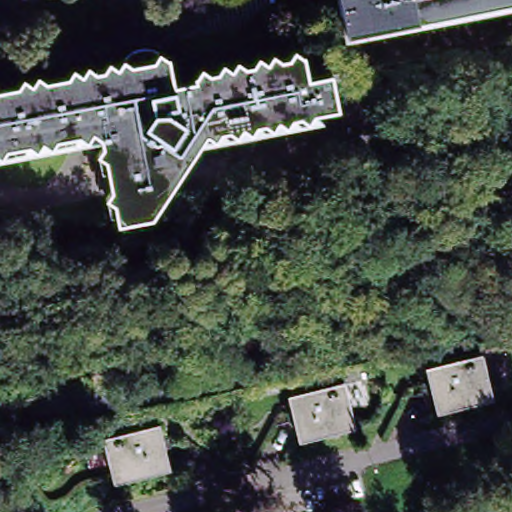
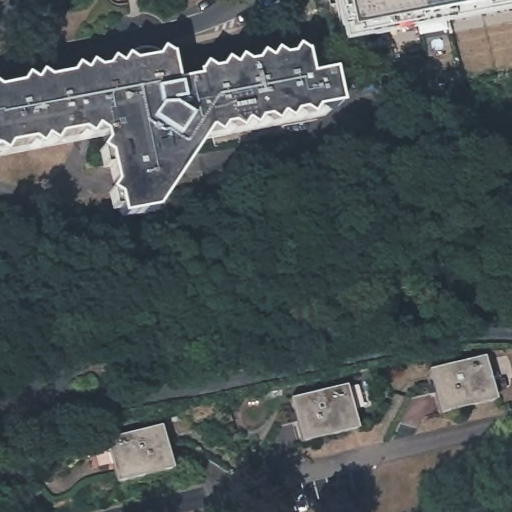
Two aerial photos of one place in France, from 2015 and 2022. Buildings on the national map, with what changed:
unchanged [(346,0),(512,0),(512,5),(353,37),(346,0)]
unchanged [(512,52),(334,87),(332,77),(512,42),(512,52)]
unchanged [(339,112),(207,138),(196,157),(191,157),(130,170),(112,173),(105,142),(97,136),(0,155),(0,95),(20,91),(25,84),(33,89),(39,81),(46,86),(70,81),(74,74),(83,79),(89,71),(96,76),(97,76),(105,75),(110,67),(119,72),(125,64),(133,69),(149,66),(155,64),(160,57),(168,62),(170,61),(176,89),(197,84),(197,81),(198,80),(204,72),(211,77),(219,76),(225,67),(233,73),(238,65),(246,70),(255,69),(260,61),(267,66),(270,65),(275,58),(282,63),(290,62),(295,54),(303,59),(305,59),(310,82),(332,77),(334,87),(339,112)]
unchanged [(157,217),(122,225),(112,173),(130,170),(191,157),(196,157),(157,217)]
unchanged [(250,191),(270,203),(260,217),(251,220),(237,211),(250,191)]
unchanged [(483,357),(495,401),(439,416),(427,372),(483,357)]
unchanged [(346,386),(355,430),(300,442),(289,398),(346,386)]
unchanged [(94,446),(110,442),(109,440),(166,427),(176,471),(120,484),(116,471),(101,475),(94,446)]

